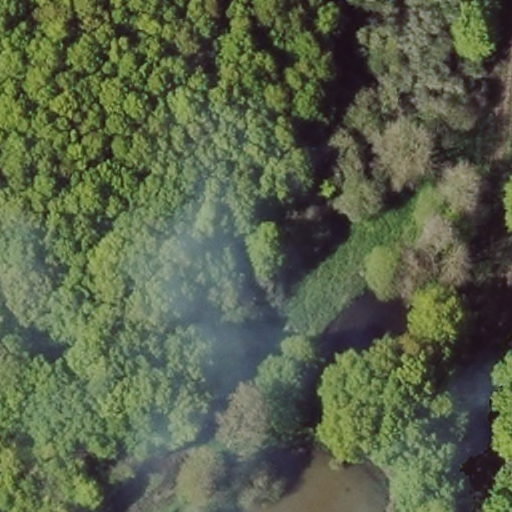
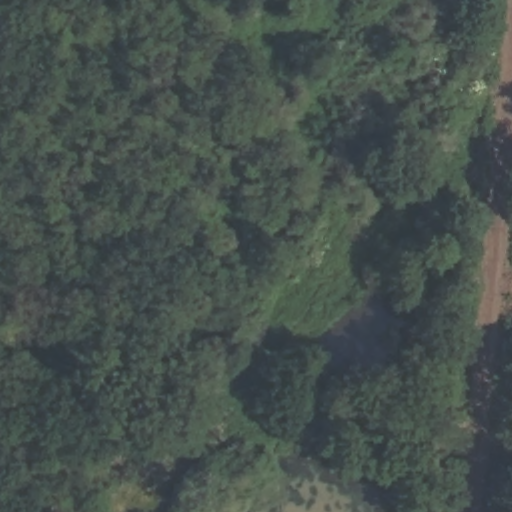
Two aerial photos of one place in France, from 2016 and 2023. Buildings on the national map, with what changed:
[]

